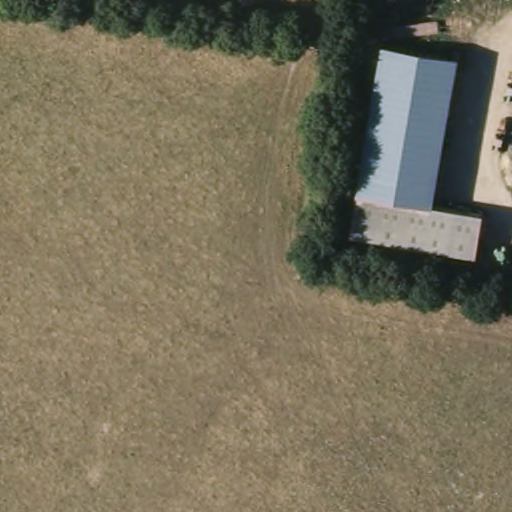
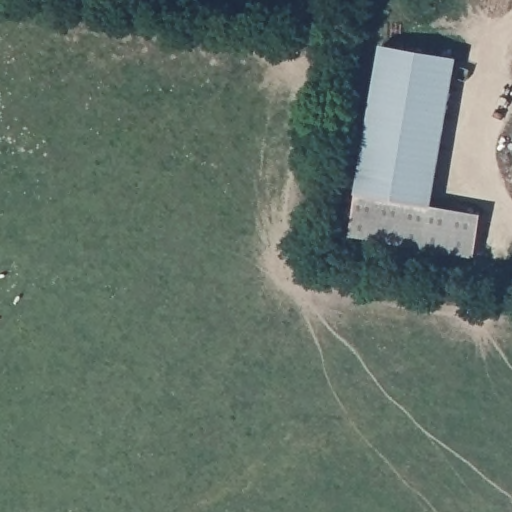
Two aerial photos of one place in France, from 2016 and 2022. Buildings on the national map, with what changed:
unchanged [(353,229),(390,41),(464,56),(435,202),(485,212),(477,253),(353,229)]

